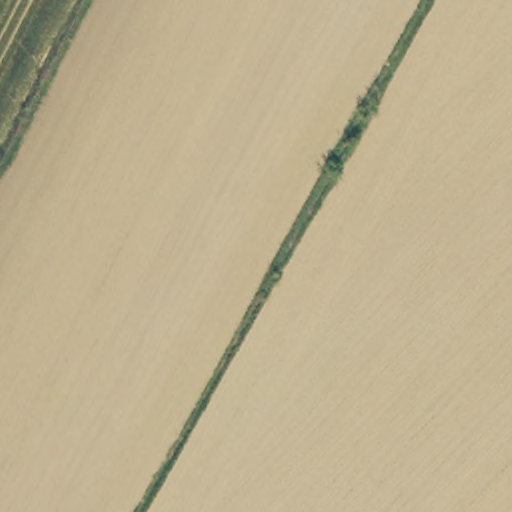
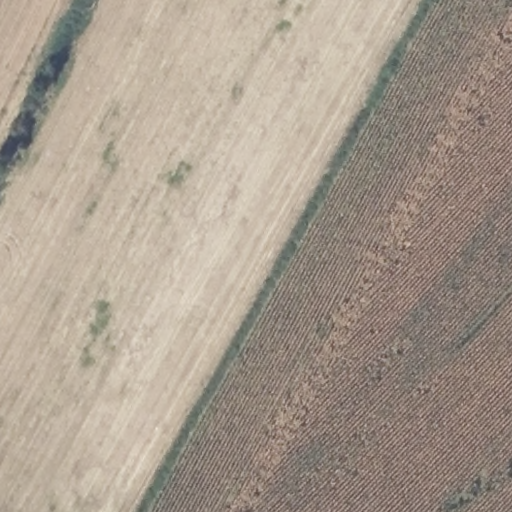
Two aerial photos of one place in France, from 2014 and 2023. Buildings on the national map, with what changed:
[]

